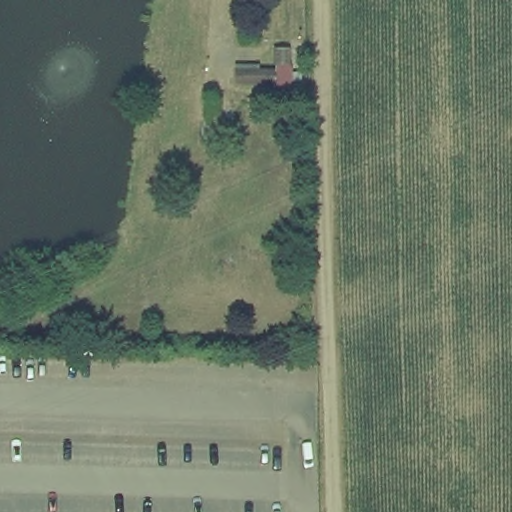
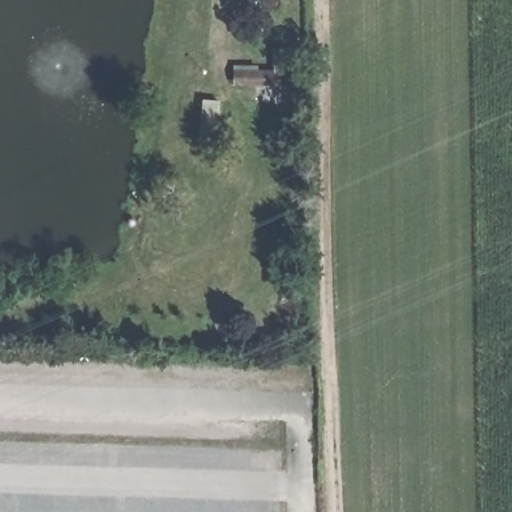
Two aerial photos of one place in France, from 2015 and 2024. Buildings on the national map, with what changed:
unchanged [(286,71),(284,99),(238,96),(238,68),(286,71)]
unchanged [(223,148),(199,147),(204,100),(226,103),(223,148)]

